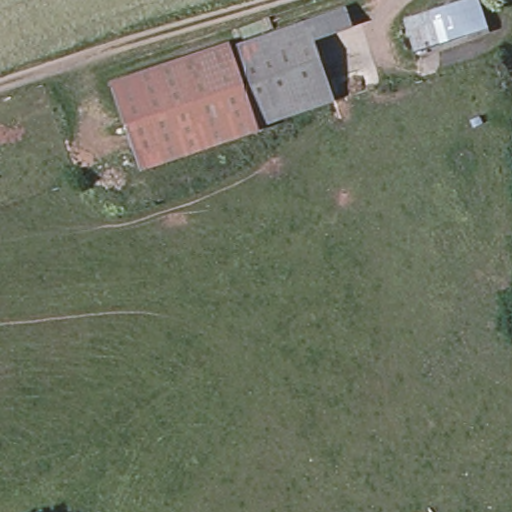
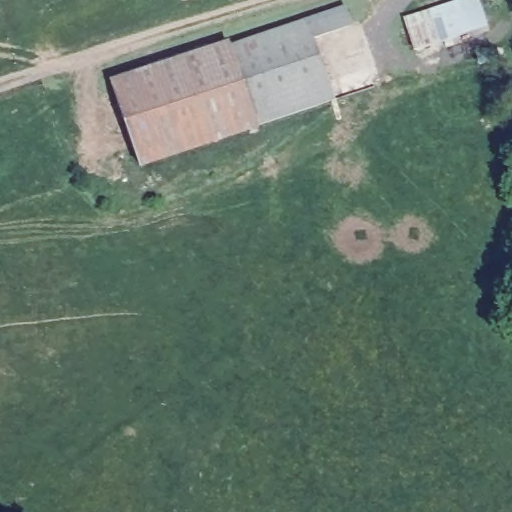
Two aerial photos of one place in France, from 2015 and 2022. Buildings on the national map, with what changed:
unchanged [(471,0),(480,30),(407,52),(397,21),(471,0)]
unchanged [(345,6),(350,25),(311,36),(330,99),(252,124),(227,42),(305,18),(345,6)]
unchanged [(227,42),(252,124),(135,161),(109,80),(227,42)]

